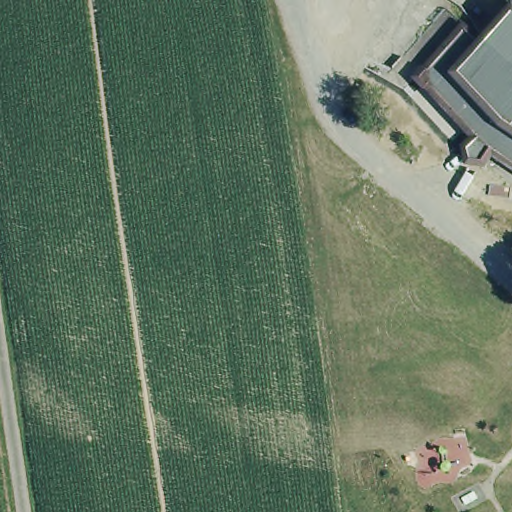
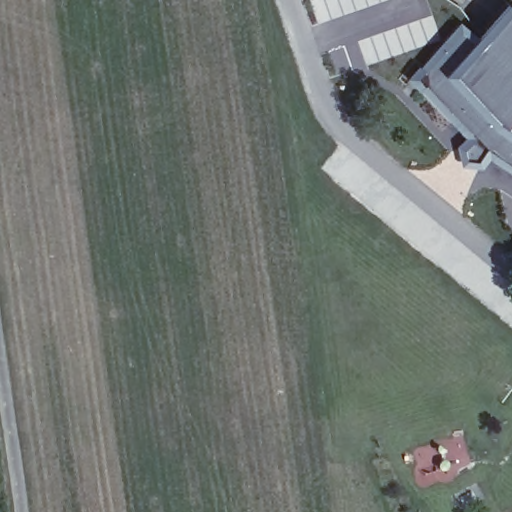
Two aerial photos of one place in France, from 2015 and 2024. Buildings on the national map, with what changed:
unchanged [(499,124),(450,70),(482,35),(511,1),(512,2),(512,133),(499,124)]
unchanged [(463,145),(471,136),(450,115),(424,86),(423,65),(464,20),(482,35),(450,70),(499,124),(512,133),(512,168),(489,152),(484,162),(467,161),(463,145)]

